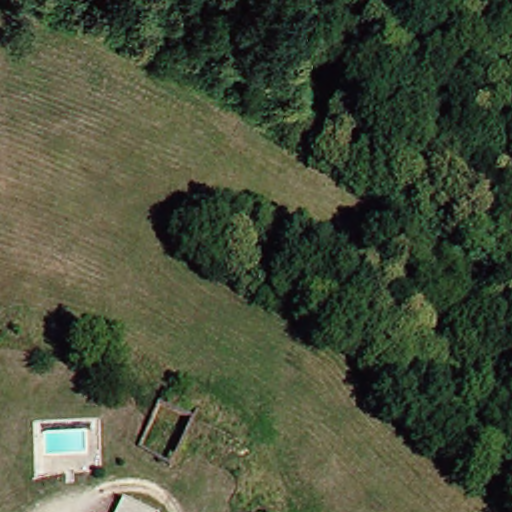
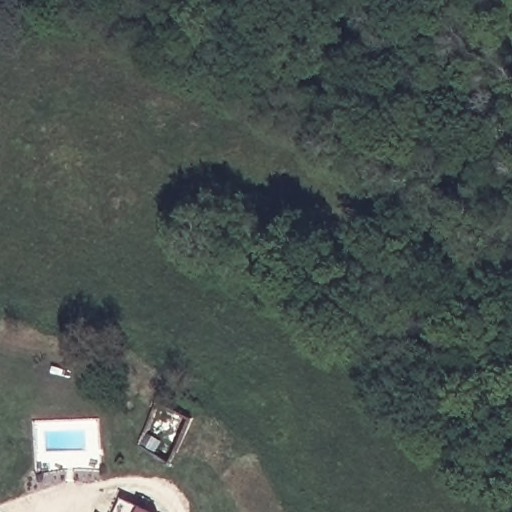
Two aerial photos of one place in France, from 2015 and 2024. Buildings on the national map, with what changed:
unchanged [(133,501),(148,512),(127,512),(133,501)]

